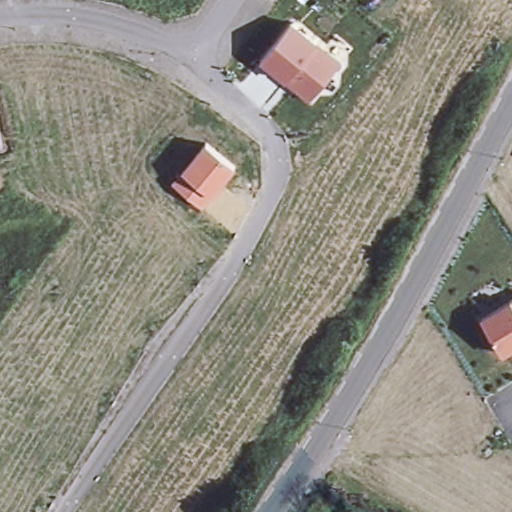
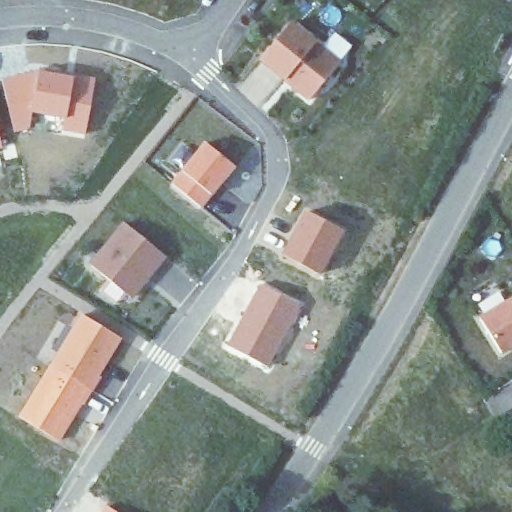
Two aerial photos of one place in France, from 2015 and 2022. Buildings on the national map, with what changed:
unchanged [(248,53),(278,17),(327,58),(297,95),(283,83),(273,74),(248,53)]
new [(40,69),(75,76),(75,74),(95,77),(86,133),(62,131),(62,117),(33,113),(30,129),(15,132),(2,79),(40,69)]
unchanged [(1,146),(0,147),(0,140),(1,146)]
unchanged [(215,196),(204,208),(172,183),(181,171),(204,143),(236,167),(215,196)]
new [(345,230),(321,276),(283,252),(303,209),(345,230)]
new [(166,258),(133,301),(88,265),(122,223),(166,258)]
new [(301,304),(270,367),(227,344),(262,285),(301,304)]
unchanged [(477,315),(512,294),(512,353),(505,358),(477,315)]
new [(120,340),(61,442),(20,417),(81,315),(120,340)]
new [(105,512),(107,507),(114,512),(105,512)]

